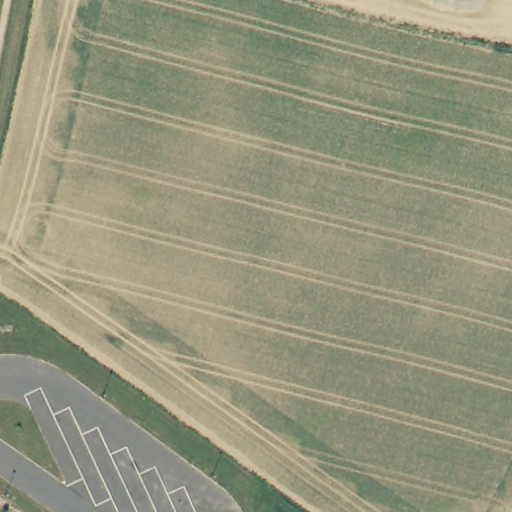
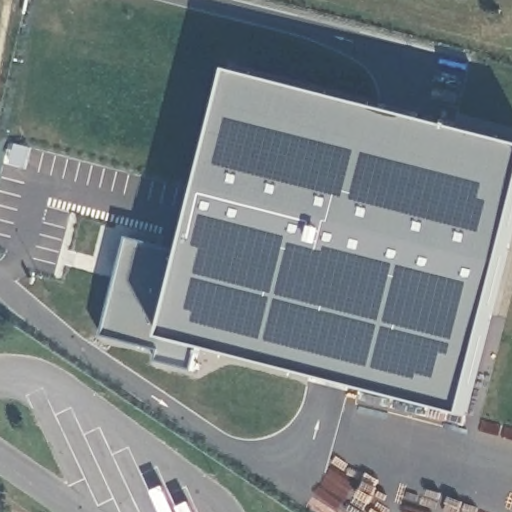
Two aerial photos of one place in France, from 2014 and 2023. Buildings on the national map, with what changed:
new [(183,251),(231,69),(512,142),(512,236),(465,417),(197,348),(192,370),(154,360),(157,350),(100,335),(126,236),(183,251)]

